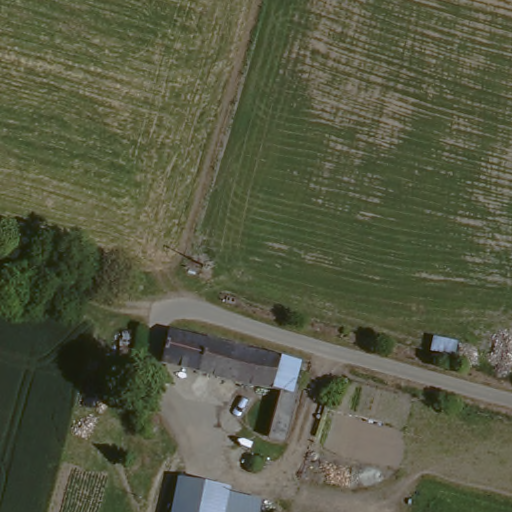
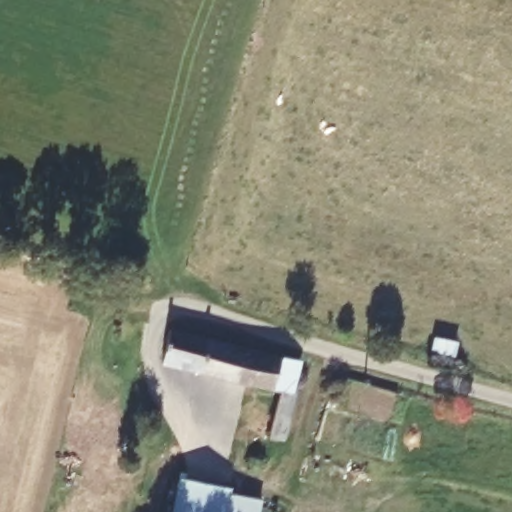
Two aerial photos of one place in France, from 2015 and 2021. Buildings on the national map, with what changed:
unchanged [(294,362),(289,386),(294,387),(283,437),(269,433),(278,391),(162,362),(171,331),(294,362)]
unchanged [(242,473),(249,455),(262,460),(255,478),(254,480),(253,480),(251,481),(250,481),(248,480),(247,480),(246,480),(245,478),(244,477),(243,476),(242,475),(242,473)]
unchanged [(176,481),(228,488),(227,495),(224,512),(170,512),(176,481)]
unchanged [(227,495),(256,500),(254,512),(224,512),(227,495)]

